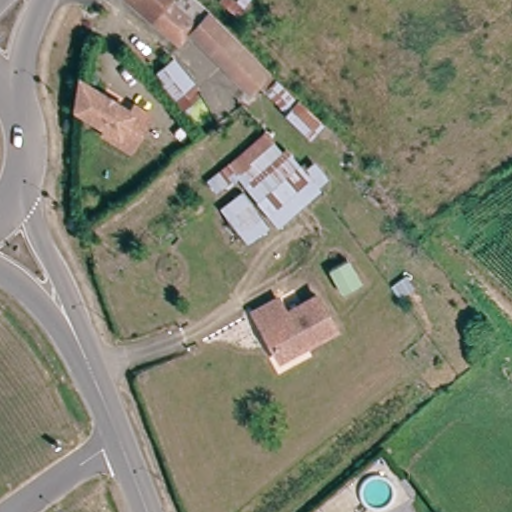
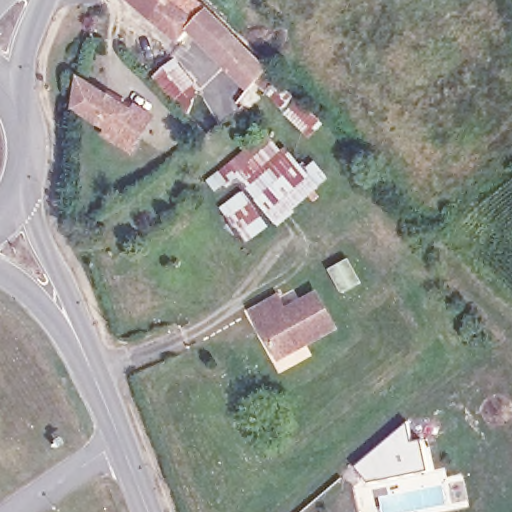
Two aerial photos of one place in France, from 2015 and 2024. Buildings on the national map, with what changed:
unchanged [(312,139),(262,86),(253,96),(187,33),(181,42),(153,20),(126,0),(193,0),(207,12),(255,57),(321,124),(312,139)]
unchanged [(200,87),(186,120),(175,105),(155,79),(177,62),(200,87)]
unchanged [(135,152),(108,137),(111,130),(112,130),(77,111),(81,83),(136,114),(148,120),(152,122),(144,137),(135,152)]
unchanged [(320,192),(281,227),(276,222),(249,245),(222,210),(247,189),(239,177),(217,192),(209,180),(267,135),(285,154),(289,152),(305,169),(317,166),(331,184),(320,192)]
unchanged [(339,292),(324,267),(341,257),(356,281),(339,292)]
unchanged [(272,357),(244,311),(268,296),(277,311),(308,293),(330,328),(300,346),(275,361),(272,357)]
new [(395,431),(408,422),(413,440),(422,437),(430,472),(367,483),(353,466),(395,431)]

